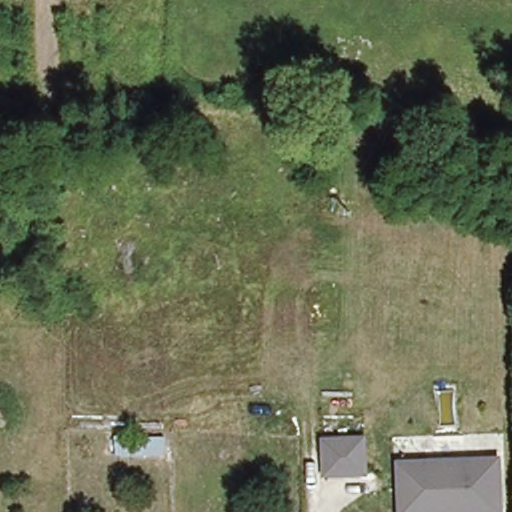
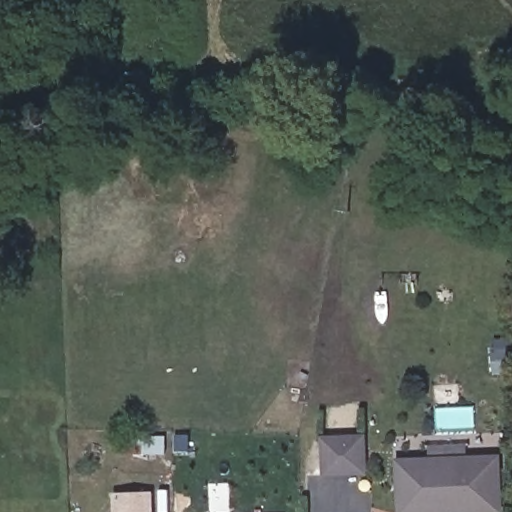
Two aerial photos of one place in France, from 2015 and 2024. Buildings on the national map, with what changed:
unchanged [(115,451),(115,435),(165,436),(166,452),(115,451)]
unchanged [(326,439),(366,438),(364,471),(327,472),(326,439)]
unchanged [(505,455),(505,512),(401,512),(398,458),(505,455)]
new [(150,496),(150,512),(114,512),(114,497),(150,496)]

